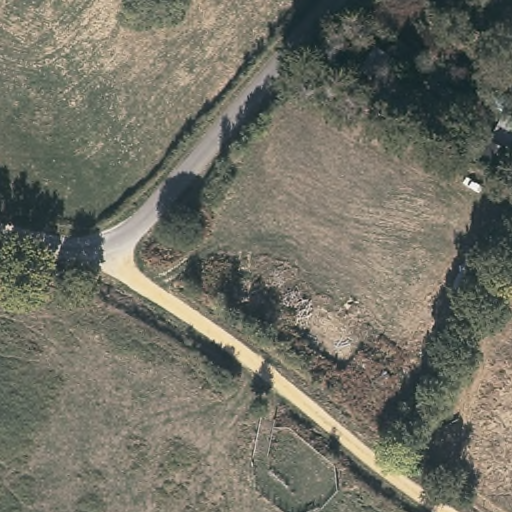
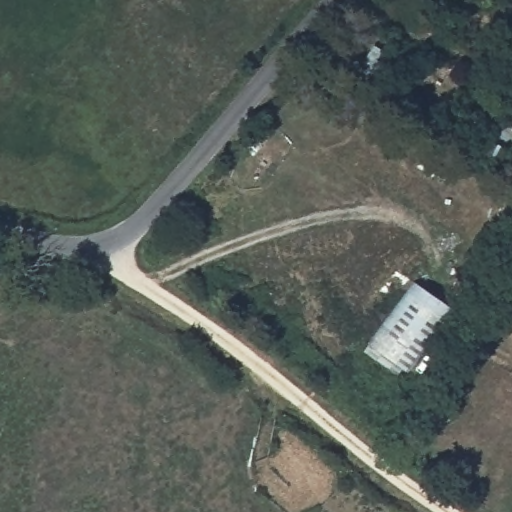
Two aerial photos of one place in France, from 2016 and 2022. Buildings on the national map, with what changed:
unchanged [(489,140),(509,147),(497,173),(476,165),(489,140)]
new [(372,345),(416,284),(453,311),(407,372),(399,377),(363,350),(372,345)]

